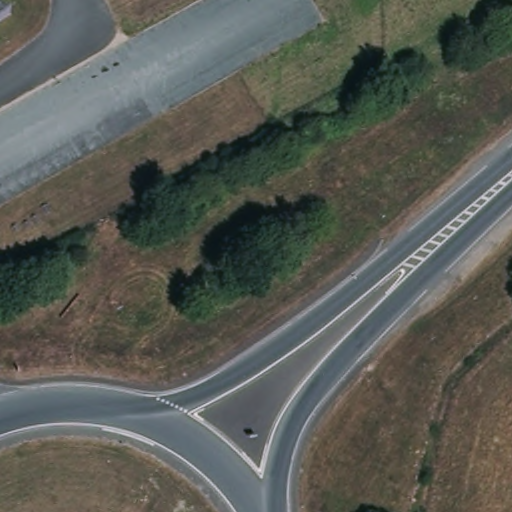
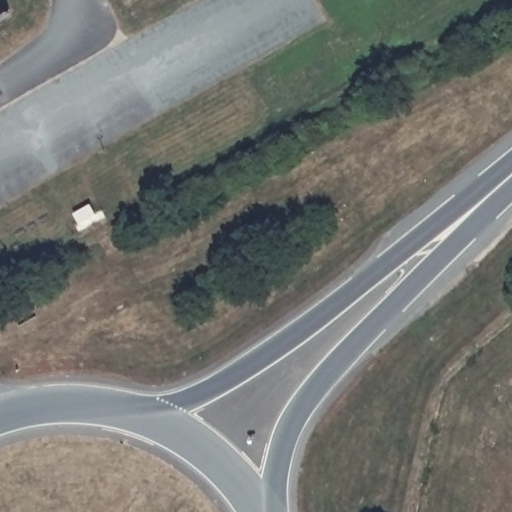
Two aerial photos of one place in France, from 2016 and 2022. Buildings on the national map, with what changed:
unchanged [(10,11),(0,18),(0,0),(1,0),(10,11)]

